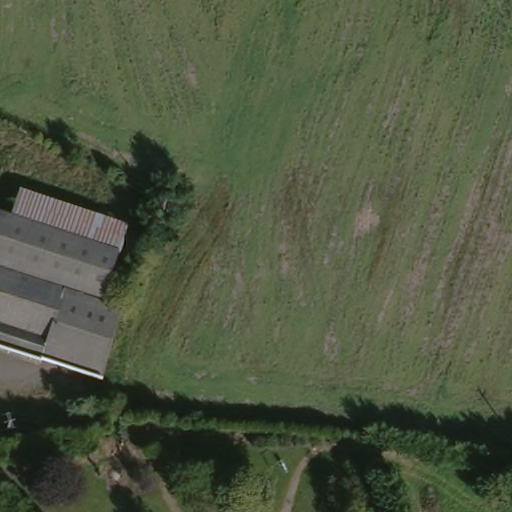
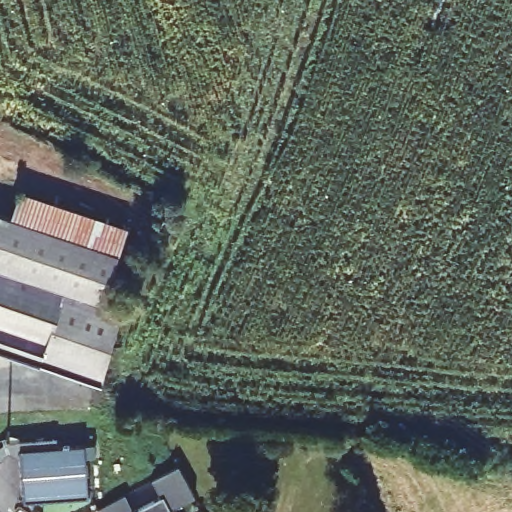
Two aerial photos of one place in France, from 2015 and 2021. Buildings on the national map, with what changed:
unchanged [(134,227),(125,252),(17,216),(25,190),(134,227)]
unchanged [(110,297),(109,301),(0,264),(0,210),(17,216),(125,252),(119,271),(110,297)]
unchanged [(105,381),(0,346),(0,270),(128,314),(105,381)]
new [(81,455),(84,494),(19,499),(15,456),(10,447),(5,459),(0,457),(0,446),(1,443),(3,438),(52,434),(53,444),(90,441),(91,454),(81,455)]
new [(121,492),(130,509),(158,494),(149,477),(175,462),(192,494),(168,507),(171,512),(97,512),(94,506),(121,492)]

